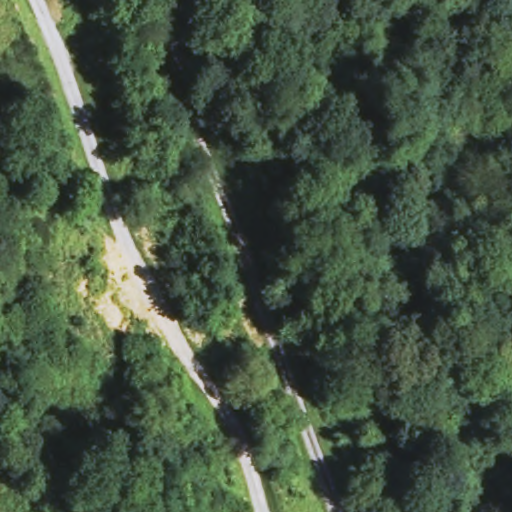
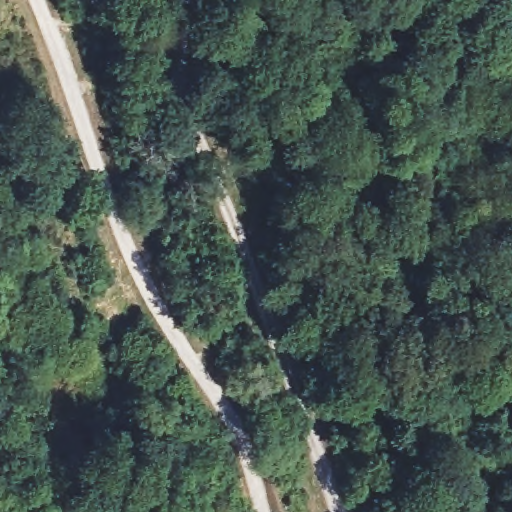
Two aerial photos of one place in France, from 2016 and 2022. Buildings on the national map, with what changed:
[]

